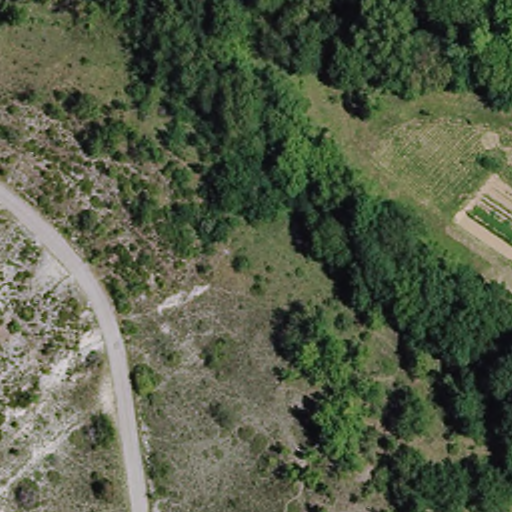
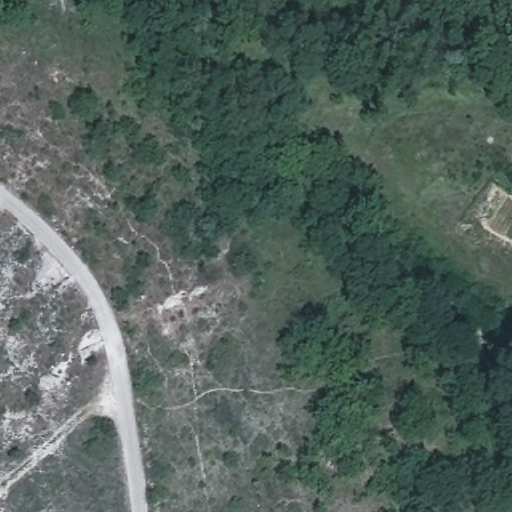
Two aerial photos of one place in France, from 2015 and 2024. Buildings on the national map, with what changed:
[]

